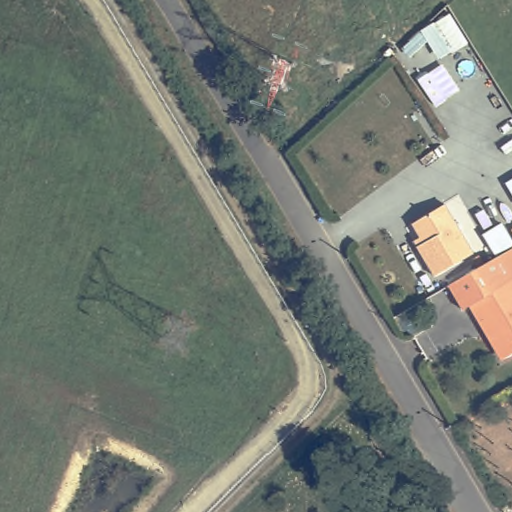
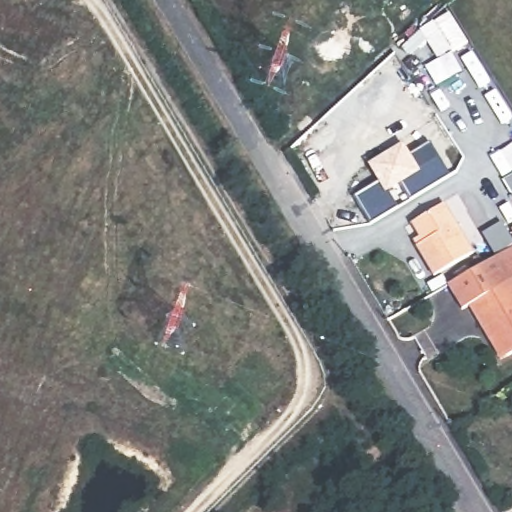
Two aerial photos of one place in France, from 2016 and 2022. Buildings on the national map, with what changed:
new [(380,182),(371,166),(406,147),(411,155),(431,143),(451,176),(371,224),(354,196),(380,182)]
unchanged [(421,236),(413,224),(447,205),(475,254),(436,277),(417,247),(413,240),(421,236)]
unchanged [(472,307),(467,310),(454,288),(482,272),(512,254),(512,360),(506,364),(495,345),(472,307)]

